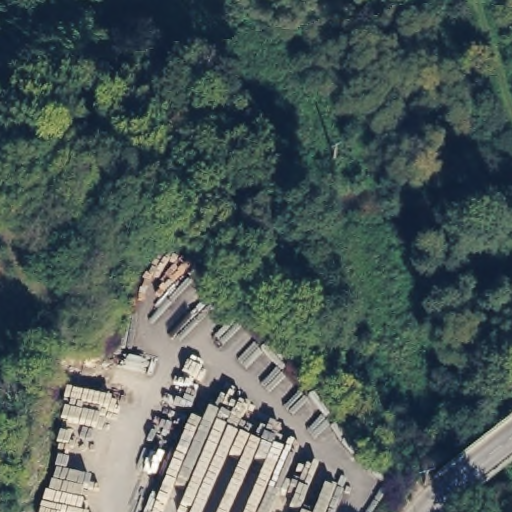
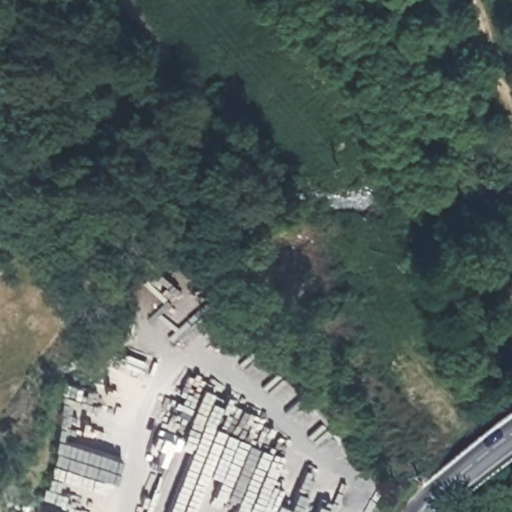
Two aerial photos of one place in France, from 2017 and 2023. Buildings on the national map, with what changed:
unchanged [(22,250),(27,263),(0,276),(0,260),(22,250)]

